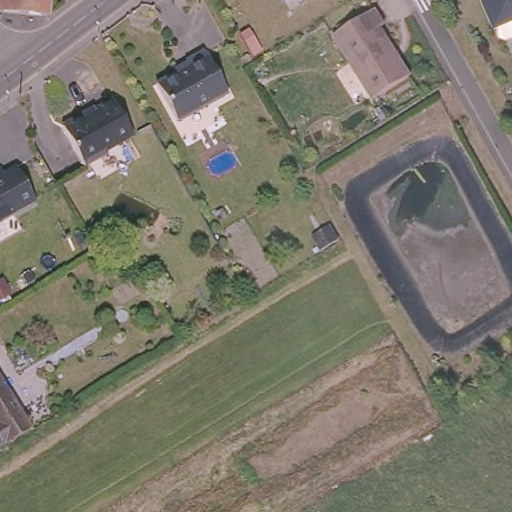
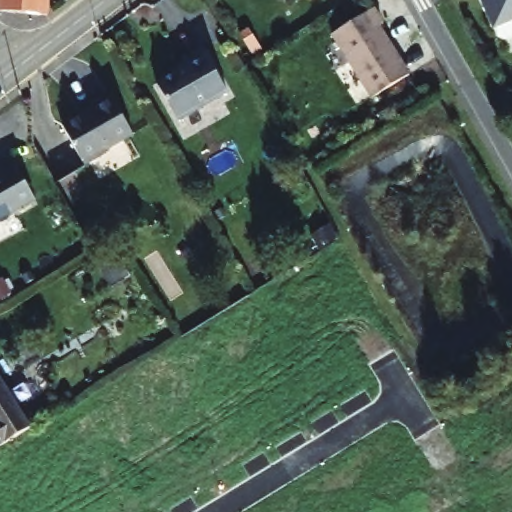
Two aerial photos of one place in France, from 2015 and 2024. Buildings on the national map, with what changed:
unchanged [(0,14),(0,2),(0,0),(23,0),(22,15),(0,14)]
unchanged [(47,9),(47,17),(22,15),(23,0),(48,0),(47,9)]
unchanged [(499,29),(495,19),(486,0),(512,0),(512,28),(505,31),(499,29)]
unchanged [(333,30),(374,5),(384,20),(380,23),(410,72),(377,93),(373,96),(333,30)]
unchanged [(225,89),(176,117),(155,80),(187,62),(183,58),(202,47),(225,89)]
unchanged [(85,107),(86,109),(114,93),(133,128),(105,144),(107,146),(85,158),(62,119),(85,107)]
unchanged [(0,161),(3,166),(17,159),(35,192),(0,212),(0,161)]
unchanged [(33,428),(0,449),(0,374),(33,428)]

